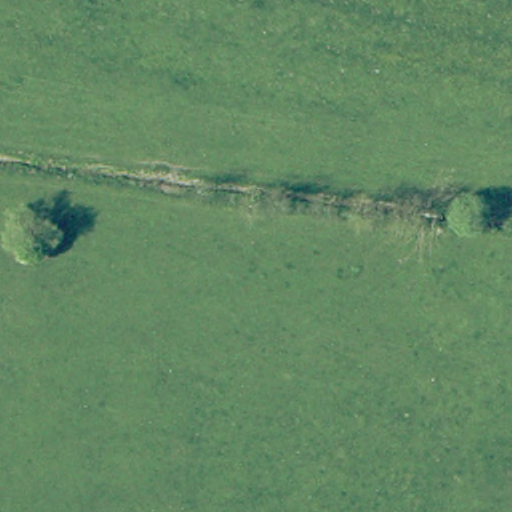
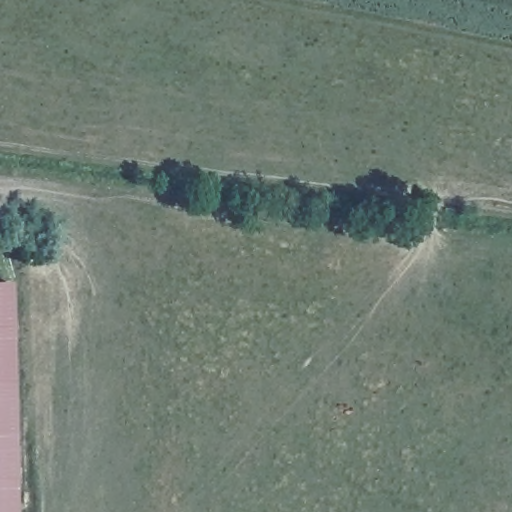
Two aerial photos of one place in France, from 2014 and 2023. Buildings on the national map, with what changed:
new [(0,512),(0,283),(7,282),(15,512),(0,512)]

